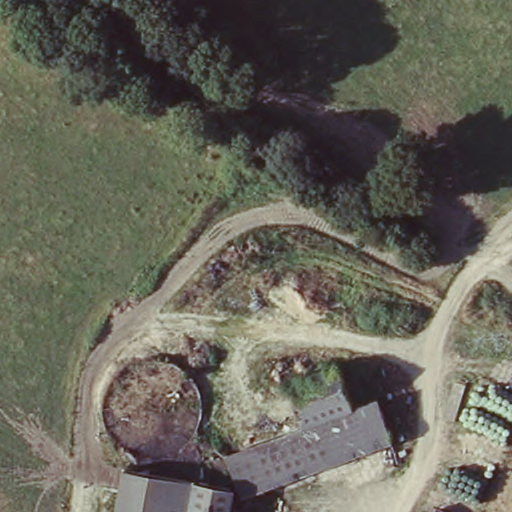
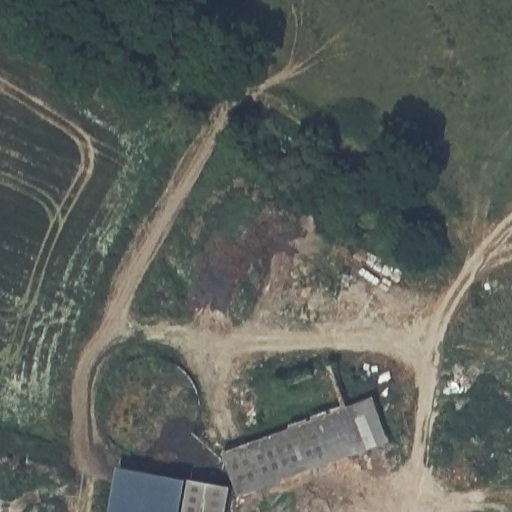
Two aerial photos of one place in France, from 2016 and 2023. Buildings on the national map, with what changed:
unchanged [(211,409),(336,364),(350,406),(224,449),(211,409)]
unchanged [(350,406),(376,397),(389,437),(237,488),(224,449),(350,406)]
unchanged [(231,512),(121,512),(129,470),(235,490),(231,512)]

